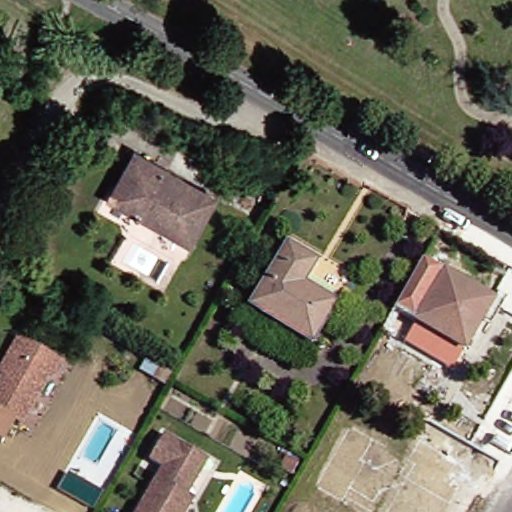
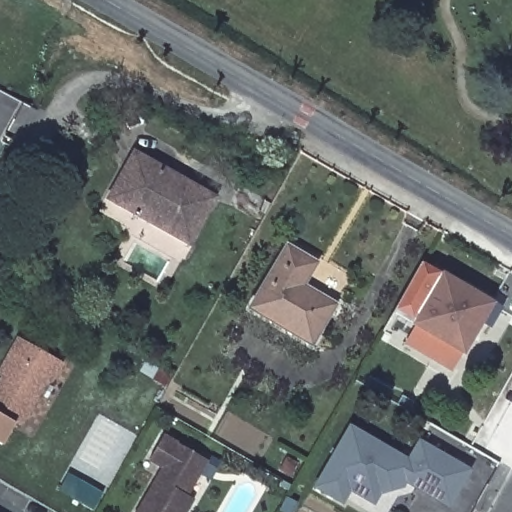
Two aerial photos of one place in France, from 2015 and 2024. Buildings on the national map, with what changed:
unchanged [(185,178),(219,198),(214,207),(212,210),(206,220),(200,230),(195,239),(192,244),(191,246),(115,203),(107,199),(112,190),(135,150),(185,178)]
unchanged [(335,301),(312,341),(250,305),(287,241),(316,257),(302,282),(335,301)]
unchanged [(418,270),(422,263),(443,276),(446,271),(504,304),(500,309),(491,304),(463,352),(415,324),(394,312),(395,309),(398,304),(404,294),(407,290),(412,280),(415,275),(418,270)]
unchanged [(463,352),(452,370),(405,341),(415,324),(463,352)]
unchanged [(59,364),(51,379),(50,378),(48,380),(45,378),(16,428),(10,425),(0,444),(0,381),(1,379),(0,379),(0,368),(7,355),(15,340),(59,364)]
new [(469,470),(448,505),(405,480),(402,486),(380,492),(373,502),(350,488),(342,501),(316,486),(351,426),(410,459),(420,442),(469,470)]
unchanged [(211,461),(203,475),(191,496),(197,500),(191,512),(141,512),(166,469),(152,461),(167,436),(199,454),(211,461)]
demolished [(430,447),(453,460),(434,493),(411,480),(419,467),(421,462),(430,449),(430,447)]
demolished [(475,472),(455,505),(443,499),(462,465),(475,472)]

